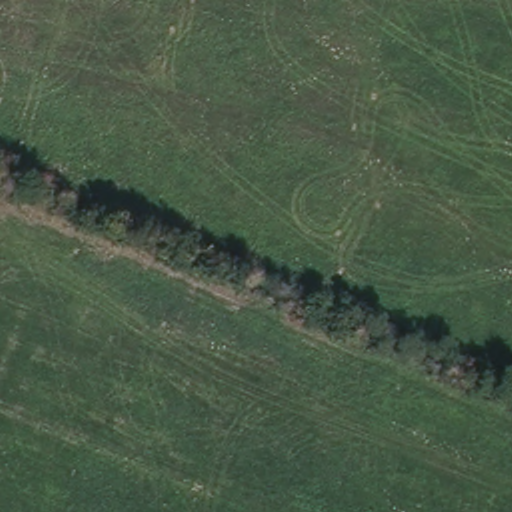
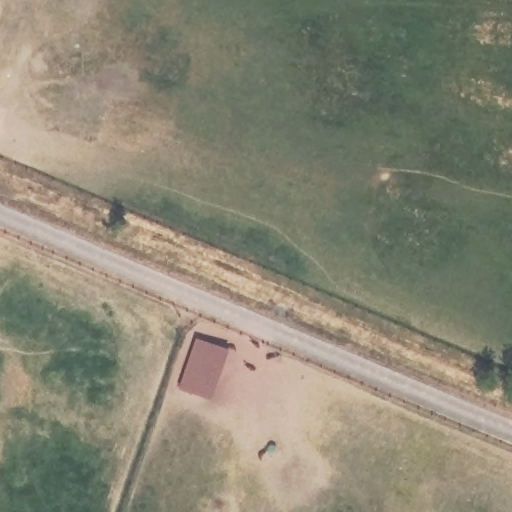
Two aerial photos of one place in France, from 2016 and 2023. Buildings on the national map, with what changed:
new [(214,397),(178,385),(192,336),(228,348),(214,397)]

